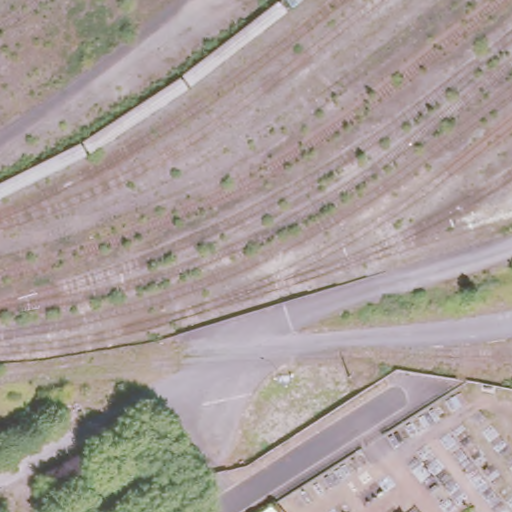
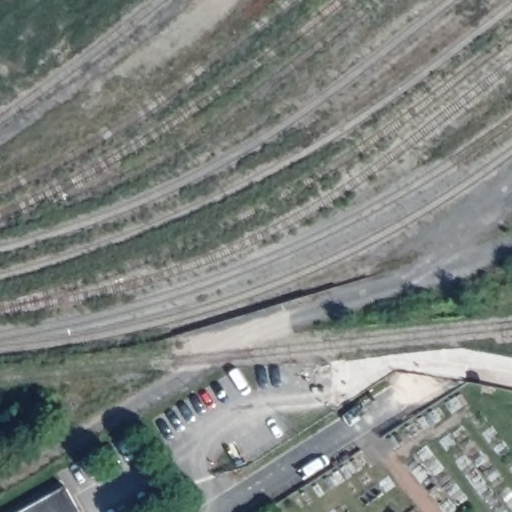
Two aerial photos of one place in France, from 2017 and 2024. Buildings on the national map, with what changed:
new [(65,487),(79,512),(21,512),(65,487)]
new [(272,507),(276,512),(265,512),(272,507)]

